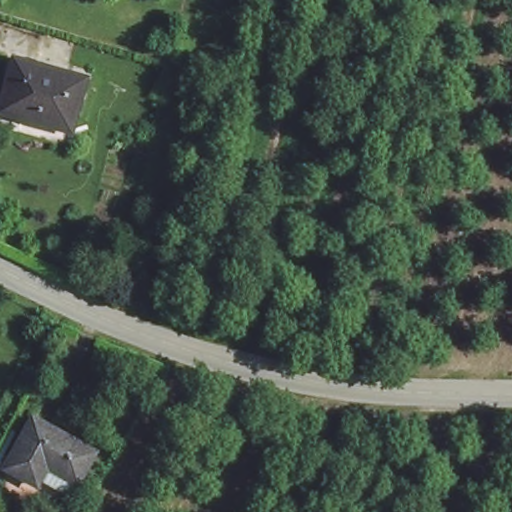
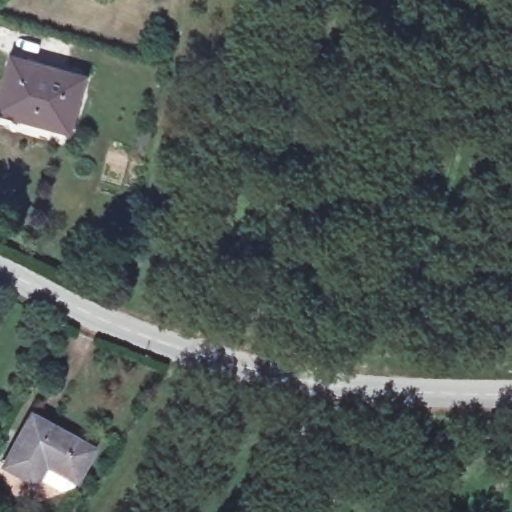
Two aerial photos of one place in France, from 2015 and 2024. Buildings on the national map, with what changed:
unchanged [(2,110),(19,57),(88,76),(72,130),(2,110)]
unchanged [(46,472),(43,477),(12,460),(41,411),(100,445),(83,475),(76,488),(46,472)]

